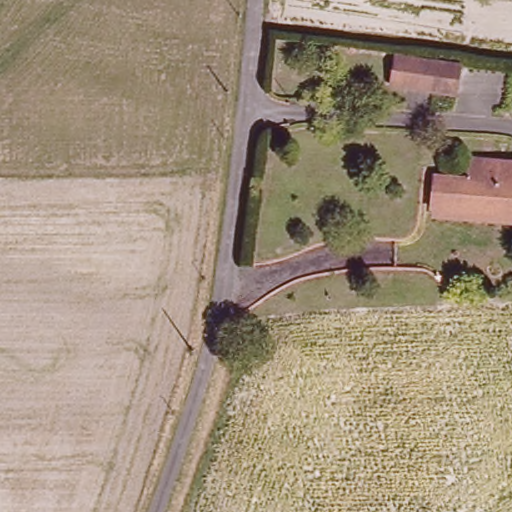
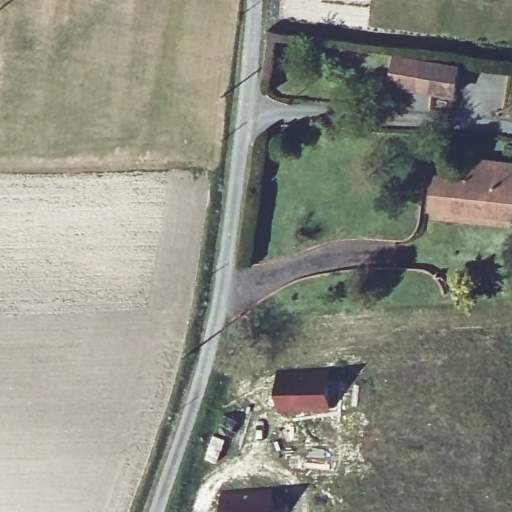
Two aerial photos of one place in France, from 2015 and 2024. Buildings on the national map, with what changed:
unchanged [(399,61),(466,70),(462,100),(395,92),(399,61)]
unchanged [(475,190),(477,164),(512,166),(512,232),(435,227),(436,217),(438,187),(475,190)]
new [(330,387),(330,411),(278,412),(277,389),(330,387)]
new [(273,487),(275,512),(218,512),(217,492),(273,487)]

